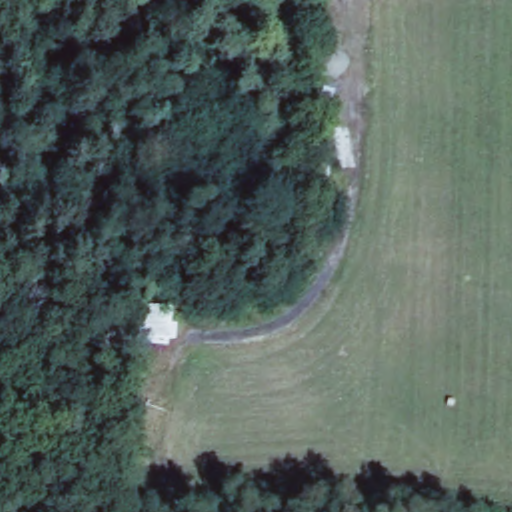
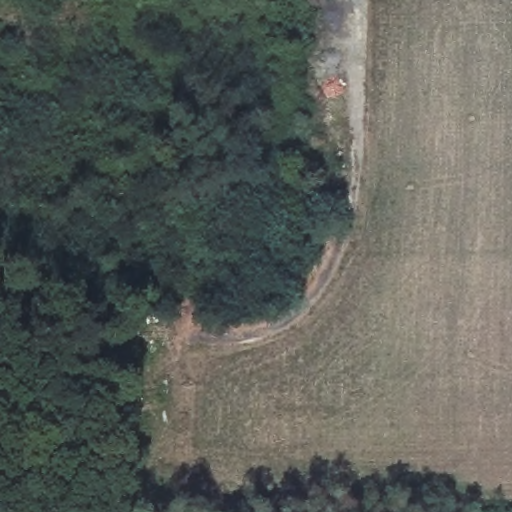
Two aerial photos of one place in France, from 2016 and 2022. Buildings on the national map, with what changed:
unchanged [(176,304),(175,341),(137,341),(137,303),(176,304)]

